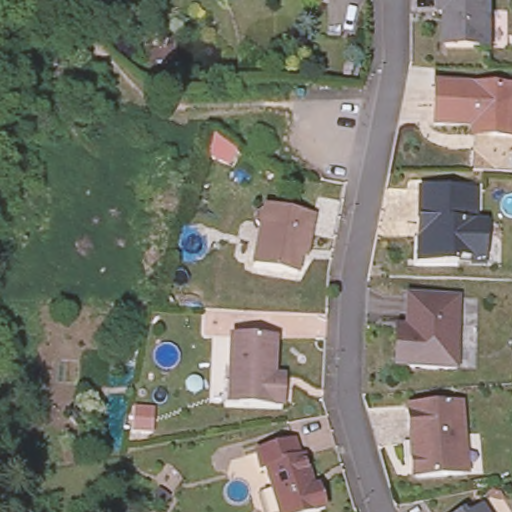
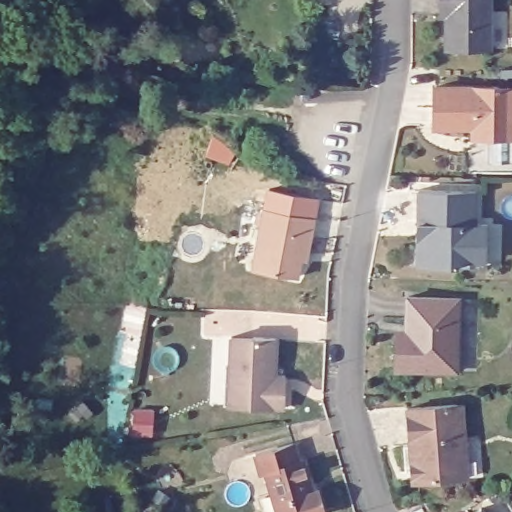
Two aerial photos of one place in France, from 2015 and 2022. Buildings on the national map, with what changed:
unchanged [(492,7),(492,8),(492,44),(448,44),(448,12),(442,11),(442,0),(492,0),(492,7)]
unchanged [(438,127),(437,87),(512,89),(512,138),(491,138),(474,139),(474,127),(438,127)]
unchanged [(485,261),(457,261),(416,260),(416,237),(419,232),(424,230),(427,230),(427,216),(417,216),(418,185),(477,187),(477,217),(486,218),(485,242),(472,242),(471,255),(485,255),(485,261)]
unchanged [(301,262),(298,277),(254,270),(261,232),(256,225),(259,215),(266,210),(314,221),(311,237),(306,262),(301,262)]
unchanged [(401,328),(412,328),(412,293),(463,293),(464,364),(411,363),(401,363),(401,328)]
unchanged [(229,386),(231,338),(276,341),(276,378),(284,378),(284,389),(282,407),(238,407),(228,406),(229,386)]
unchanged [(463,477),(418,481),(413,476),(412,463),(416,457),(416,446),(410,445),(409,407),(464,407),(466,453),(468,477),(463,477)]
unchanged [(276,488),(270,467),(264,468),(259,450),(299,440),(304,456),(308,455),(319,487),(323,486),(329,507),(310,512),(283,512),(268,512),(262,492),(276,488)]
unchanged [(480,512),(463,512),(476,505),(480,512)]
unchanged [(457,512),(455,512),(457,511),(457,512)]

